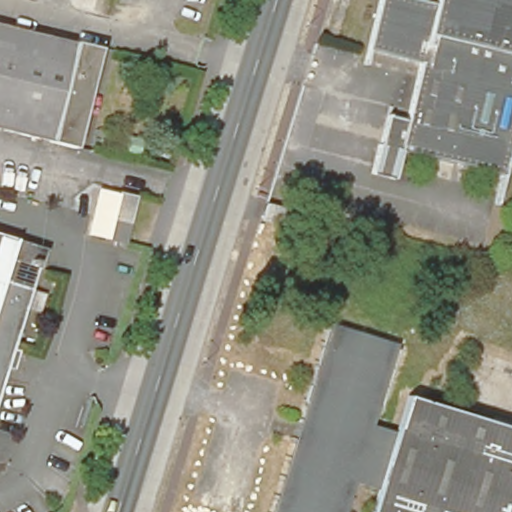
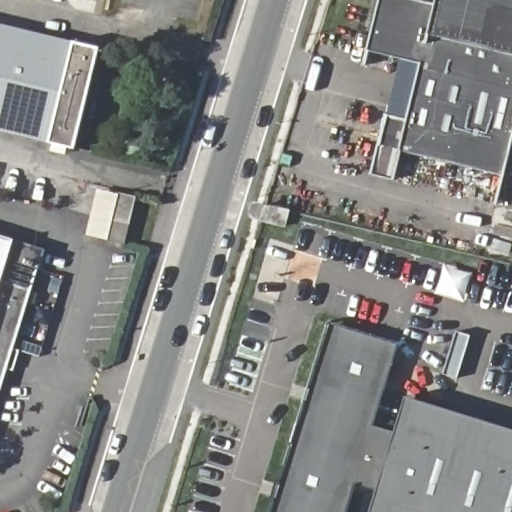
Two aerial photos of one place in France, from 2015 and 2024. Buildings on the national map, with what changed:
unchanged [(405,154),(396,180),(373,175),(386,122),(409,127),(422,69),(368,57),(381,0),(401,0),(434,7),(436,0),(512,0),(512,140),(503,179),(405,154)]
unchanged [(99,51),(75,152),(51,146),(52,139),(0,128),(0,25),(99,51)]
unchanged [(116,195),(137,201),(130,223),(122,251),(96,242),(103,216),(109,217),(116,195)]
unchanged [(288,225),(281,244),(249,234),(257,215),(288,225)]
unchanged [(46,255),(39,279),(32,276),(0,372),(0,240),(46,255)]
unchanged [(388,355),(367,428),(395,437),(405,405),(512,435),(512,512),(369,512),(374,492),(350,486),(342,512),(274,512),(327,336),(388,355)]

